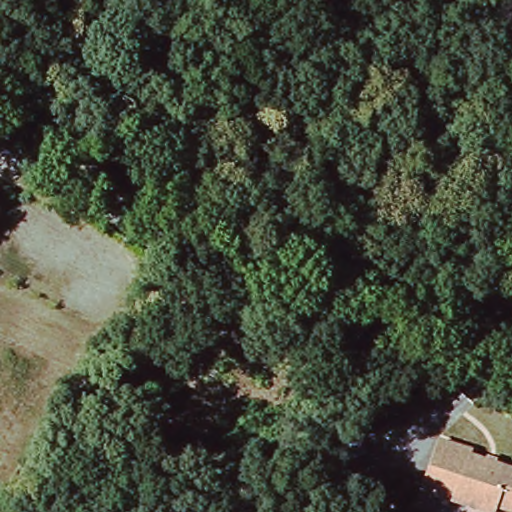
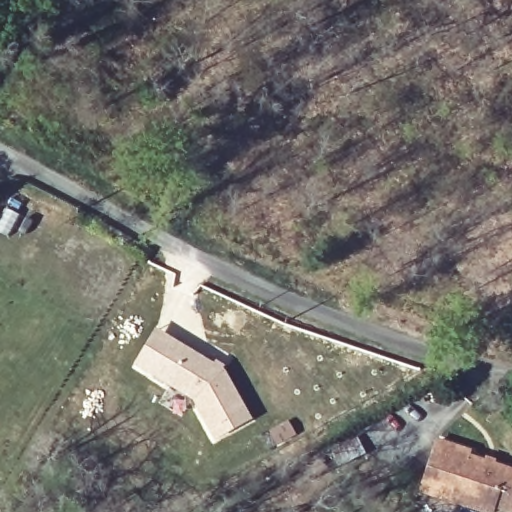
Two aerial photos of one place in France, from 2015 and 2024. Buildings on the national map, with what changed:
new [(156,328),(225,368),(252,420),(216,440),(193,400),(135,366),(156,328)]
unchanged [(428,477),(440,443),(470,453),(468,460),(512,473),(512,512),(505,512),(490,507),(489,512),(482,512),(451,501),(424,491),(428,477)]

